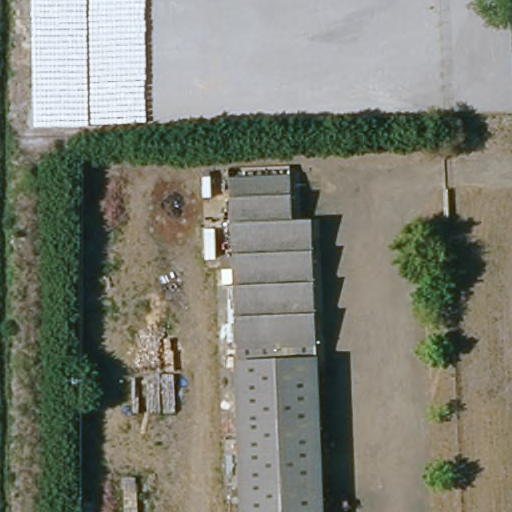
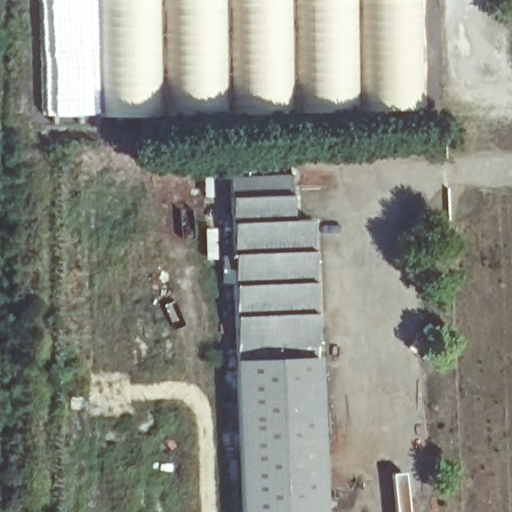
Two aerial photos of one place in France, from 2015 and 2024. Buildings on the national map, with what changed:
new [(46,0),(95,0),(97,114),(48,114),(46,29),(40,29),(40,9),(46,9),(46,0)]
new [(426,111),(106,116),(104,0),(422,0),(426,111)]
demolished [(318,17),(324,28),(327,39),(324,51),(317,64),(306,73),(277,75),(255,57),(252,43),(253,28),(261,20),(276,3),(297,3),(308,10),(318,17)]
demolished [(208,8),(219,11),(228,16),(234,26),(238,38),(238,51),(233,61),(226,69),(218,75),(208,78),(195,78),(184,75),(176,68),(170,58),(166,46),(168,31),(174,19),(184,10),(199,7),(208,8)]
demolished [(359,50),(348,52),(337,48),(330,41),(327,33),(328,25),(332,16),(339,11),(349,9),(359,13),(367,17),(367,41),(359,50)]
unchanged [(234,231),(232,175),(287,171),(289,195),(310,194),(312,228),(234,231)]
unchanged [(234,231),(312,228),(317,357),(238,360),(234,231)]
unchanged [(317,357),(319,416),(239,420),(238,360),(317,357)]
unchanged [(319,416),(323,512),(243,512),(239,420),(319,416)]

